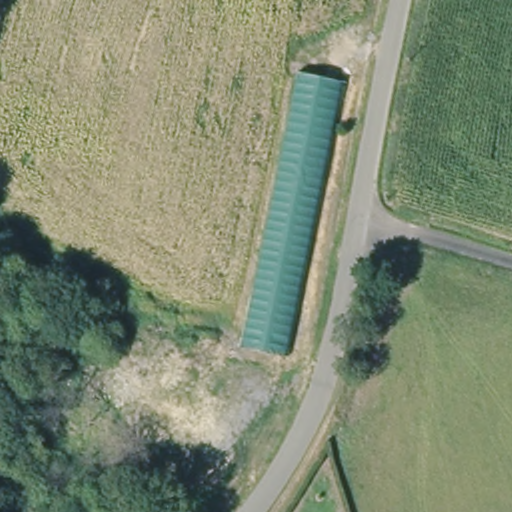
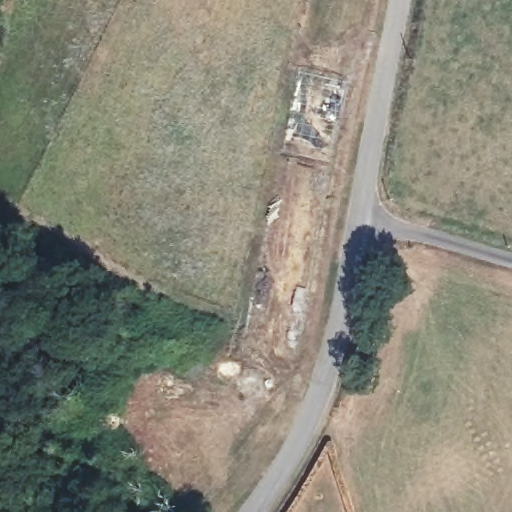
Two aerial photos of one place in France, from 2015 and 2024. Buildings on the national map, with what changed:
demolished [(347,83),(288,357),(242,348),(300,74),(347,83)]

